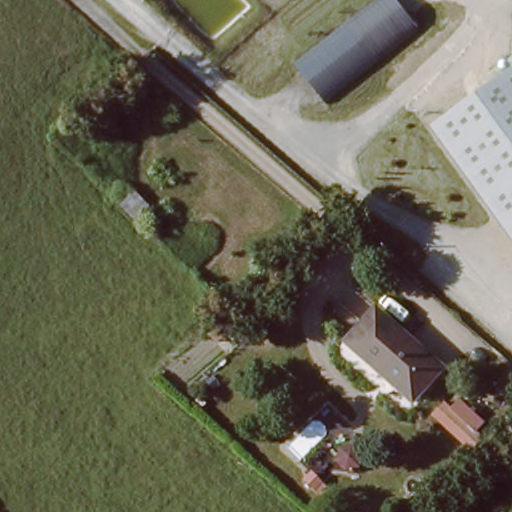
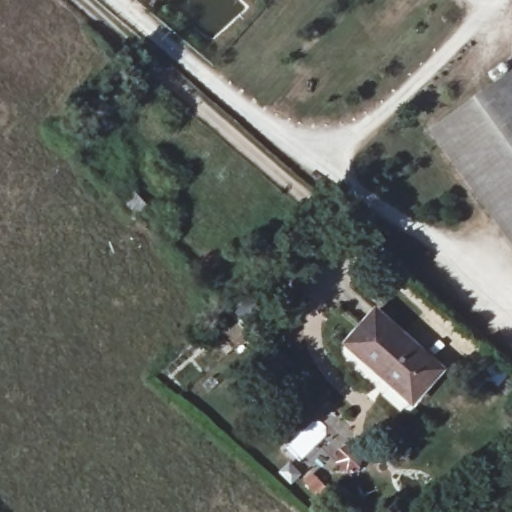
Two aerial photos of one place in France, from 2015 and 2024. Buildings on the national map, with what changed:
demolished [(326,102),(295,64),(352,16),(384,55),(326,102)]
unchanged [(431,130),(512,71),(512,244),(431,130)]
unchanged [(350,345),(378,312),(442,368),(414,401),(350,345)]
unchanged [(492,427),(471,453),(432,417),(446,401),(454,408),(462,400),(492,427)]

